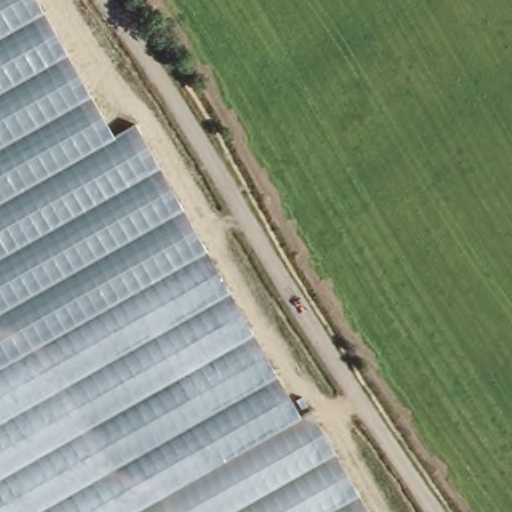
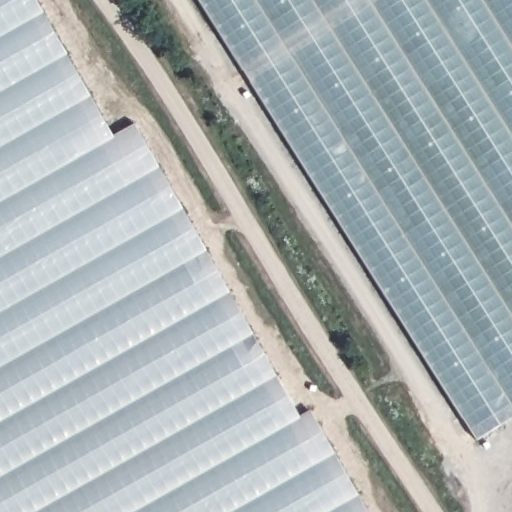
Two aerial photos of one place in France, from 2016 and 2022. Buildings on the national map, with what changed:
unchanged [(113,132),(132,120),(199,246),(0,359),(0,0),(35,0),(113,132)]
new [(476,442),(197,0),(512,0),(512,419),(476,442)]
unchanged [(295,411),(308,406),(364,512),(0,512),(0,359),(199,246),(295,411)]

